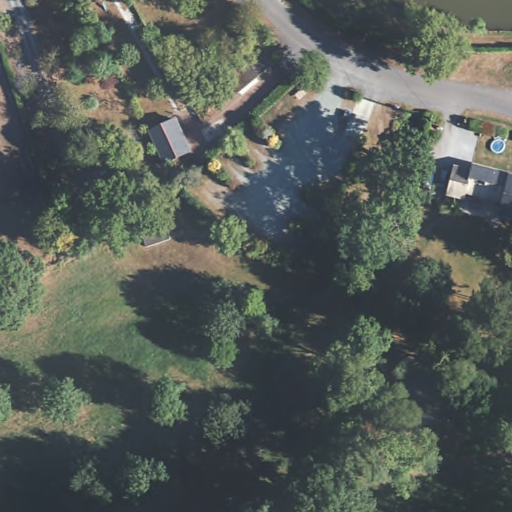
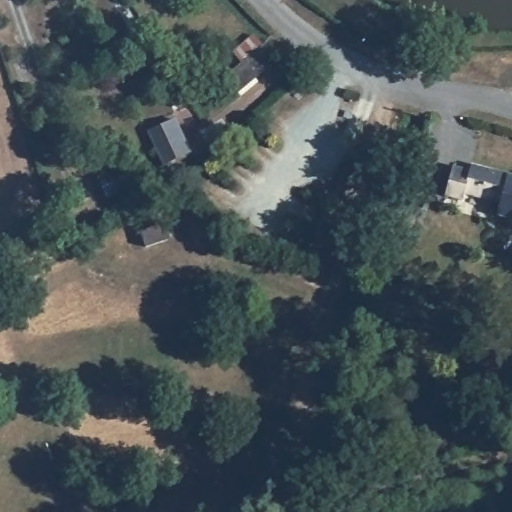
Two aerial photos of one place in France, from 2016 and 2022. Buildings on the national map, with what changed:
unchanged [(229,76),(244,62),(239,55),(260,36),(273,50),(282,57),(271,70),(263,70),(243,90),(241,88),(235,83),(229,76)]
unchanged [(183,77),(186,83),(180,86),(176,80),(183,77)]
unchanged [(176,125),(189,152),(169,161),(161,165),(148,137),(155,134),(176,125)]
unchanged [(512,172),(512,214),(492,210),(495,197),(461,189),(460,193),(441,190),(445,163),(466,166),(468,161),(502,169),(512,172)]
unchanged [(163,215),(169,231),(146,240),(140,224),(163,215)]

